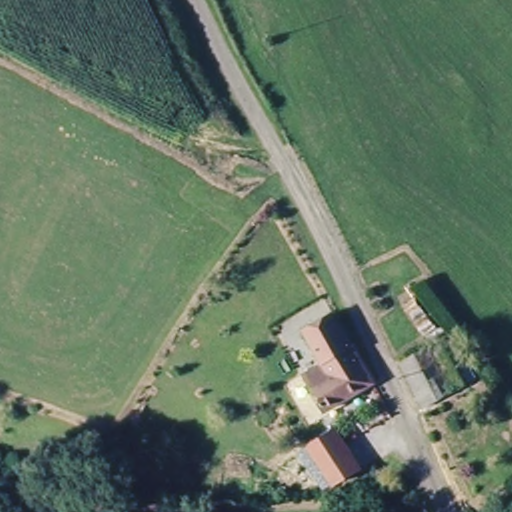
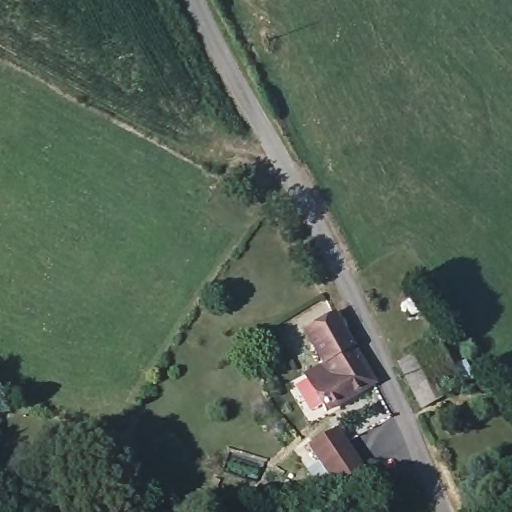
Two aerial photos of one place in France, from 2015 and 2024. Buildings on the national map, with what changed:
unchanged [(371,385),(325,413),(334,434),(324,440),(302,407),(314,399),(304,379),(323,368),(303,331),(329,316),(371,385)]
unchanged [(399,362),(416,354),(427,377),(435,375),(449,402),(422,417),(399,362)]
unchanged [(309,450),(324,440),(334,434),(360,476),(335,492),(309,450)]

